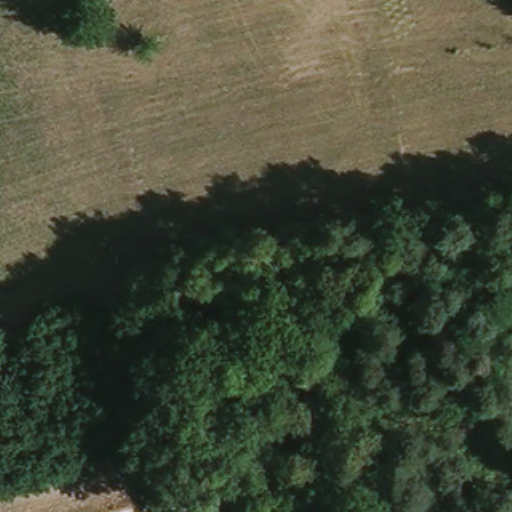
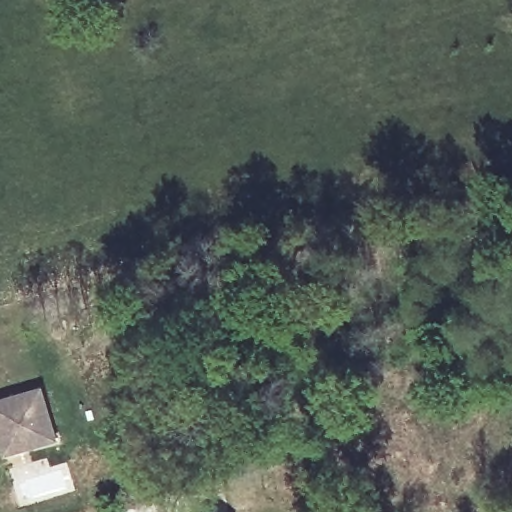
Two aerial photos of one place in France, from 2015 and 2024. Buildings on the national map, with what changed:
new [(58,442),(4,456),(0,443),(0,400),(42,387),(58,442)]

